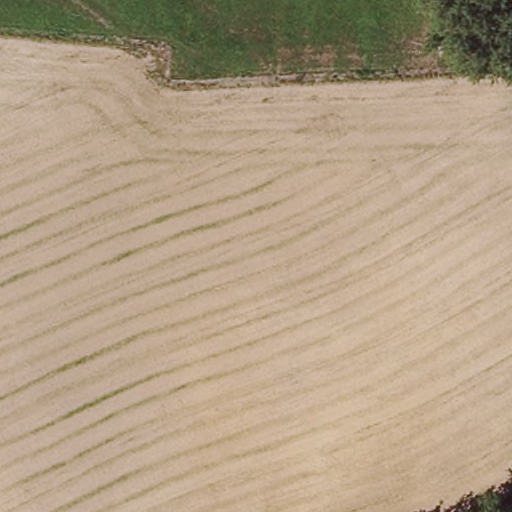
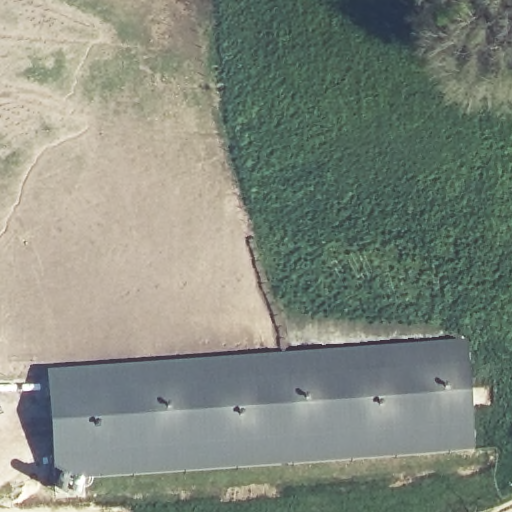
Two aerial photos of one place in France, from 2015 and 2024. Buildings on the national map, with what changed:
new [(470,342),(478,446),(60,478),(51,375),(470,342)]

